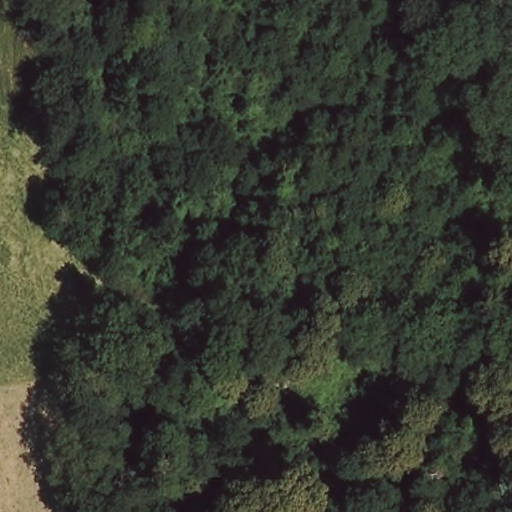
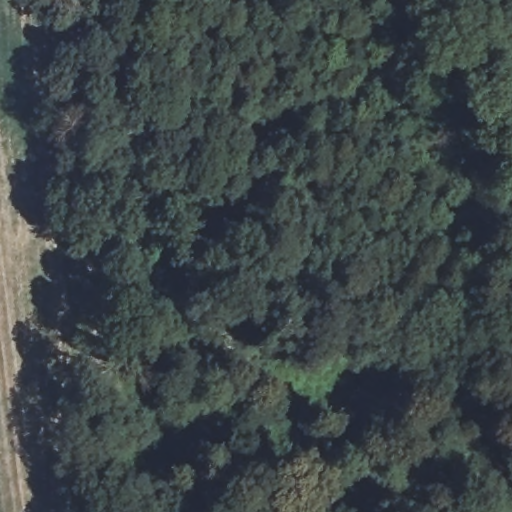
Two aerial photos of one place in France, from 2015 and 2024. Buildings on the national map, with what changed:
[]

